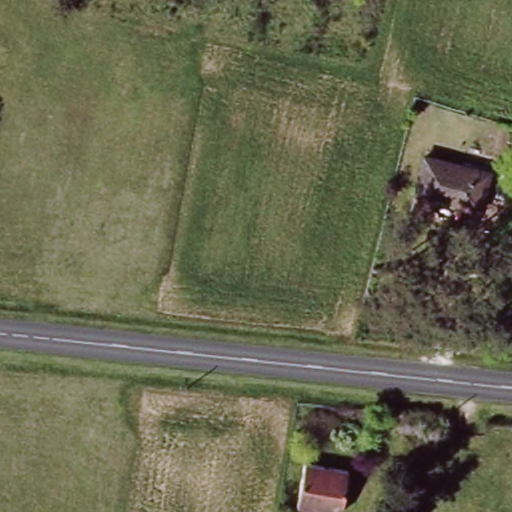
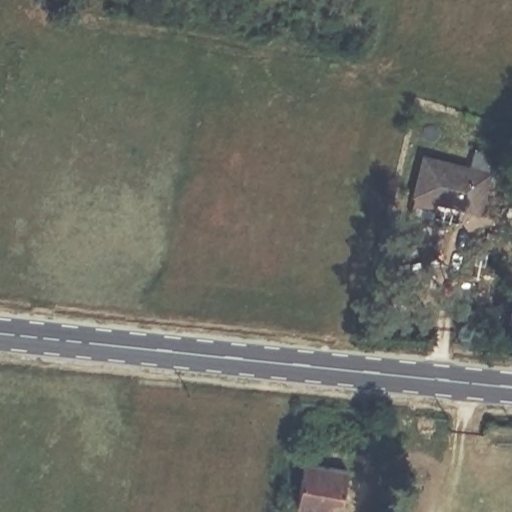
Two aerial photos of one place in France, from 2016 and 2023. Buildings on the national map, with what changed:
unchanged [(486,169),(479,201),(460,197),(460,200),(415,189),(424,154),(486,169)]
unchanged [(347,462),(340,503),(297,495),(304,455),(347,462)]

